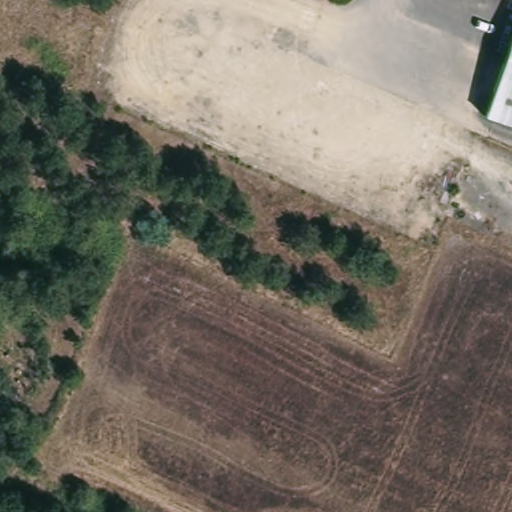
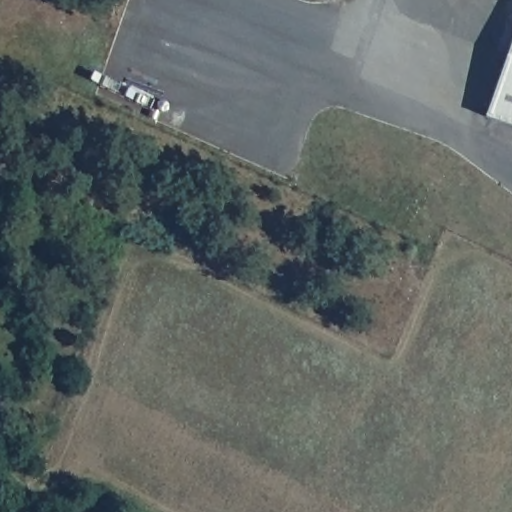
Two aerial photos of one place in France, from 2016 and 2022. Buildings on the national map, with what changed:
unchanged [(512,0),(512,16),(455,0),(512,0)]
unchanged [(512,87),(512,132),(500,128),(512,87)]

